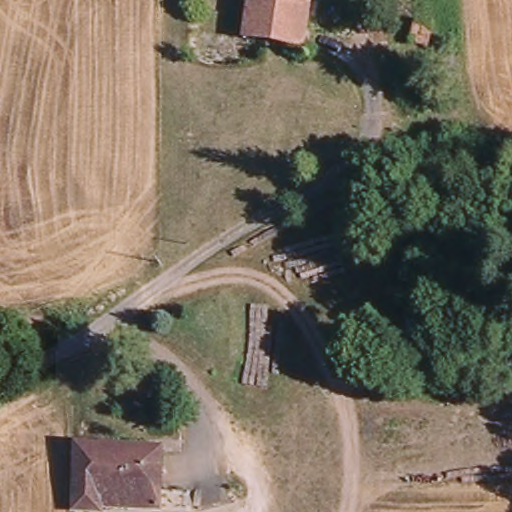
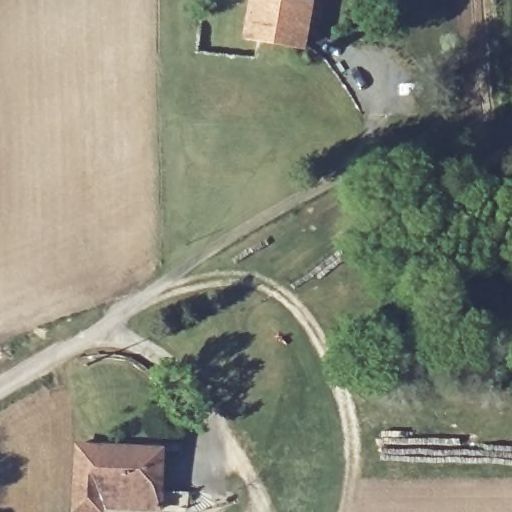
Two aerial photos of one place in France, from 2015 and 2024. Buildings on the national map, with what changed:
unchanged [(254,0),(313,0),(308,44),(249,35),(254,0)]
unchanged [(437,26),(432,46),(416,42),(421,22),(437,26)]
unchanged [(81,445),(165,448),(164,493),(105,492),(104,512),(78,512),(81,445)]

